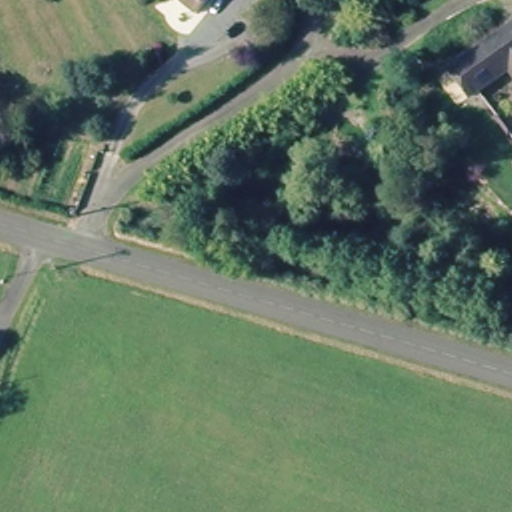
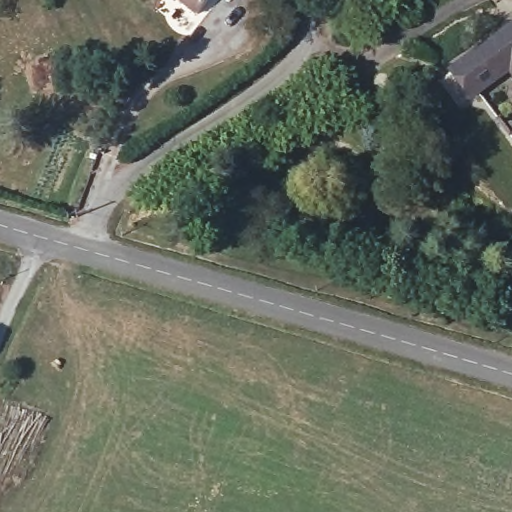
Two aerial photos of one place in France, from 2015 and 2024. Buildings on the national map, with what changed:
unchanged [(199,0),(208,0),(204,5),(199,0)]
unchanged [(510,102),(498,84),(460,112),(439,82),(512,30),(512,119),(504,107),(510,102)]
unchanged [(94,87),(101,103),(83,112),(71,117),(64,100),(76,95),(94,87)]
unchanged [(512,182),(512,189),(508,184),(512,182)]

